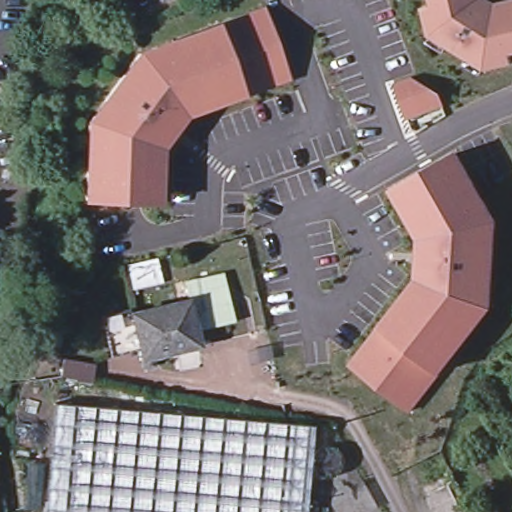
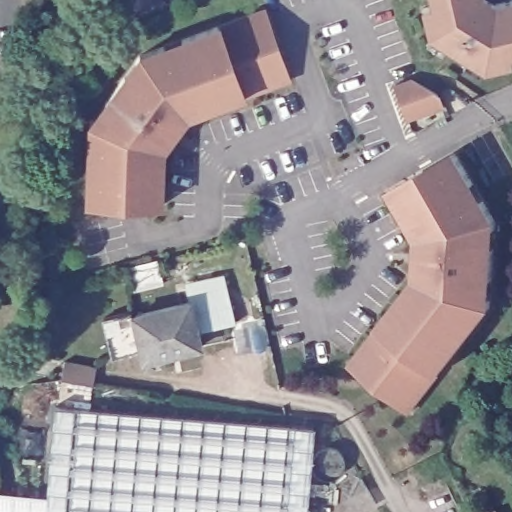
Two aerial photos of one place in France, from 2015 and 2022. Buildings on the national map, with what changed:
unchanged [(493,5),(511,0),(512,0),(512,53),(508,55),(510,64),(482,71),(433,64),(427,36),(436,34),(428,0),(486,0),(493,5)]
unchanged [(88,124),(140,54),(217,26),(266,10),(290,81),(244,96),(190,119),(165,147),(164,203),(86,203),(88,124)]
unchanged [(412,78),(437,92),(444,107),(408,119),(395,85),(412,78)]
unchanged [(457,152),(496,220),(493,306),(441,373),(408,412),(349,366),(381,323),(414,278),(416,237),(389,192),(457,152)]
unchanged [(189,302),(199,346),(150,358),(152,367),(143,369),(132,315),(189,302)]
unchanged [(102,317),(127,310),(137,348),(111,355),(102,317)]
unchanged [(64,360),(94,366),(92,384),(60,378),(64,360)]
unchanged [(304,512),(45,512),(48,490),(56,404),(312,427),(304,512)]
unchanged [(446,493),(455,512),(429,512),(425,503),(446,493)]

